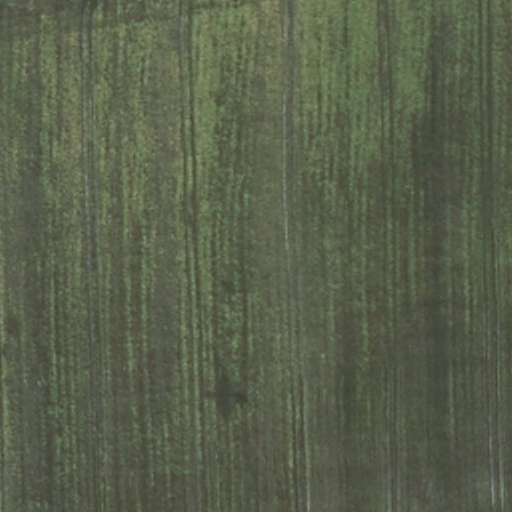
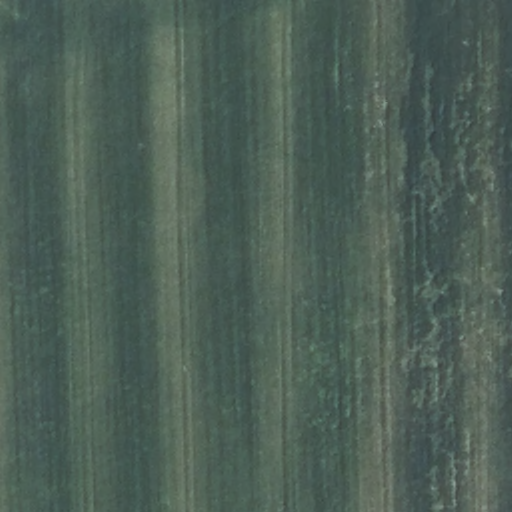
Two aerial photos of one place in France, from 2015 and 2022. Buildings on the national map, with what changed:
[]

